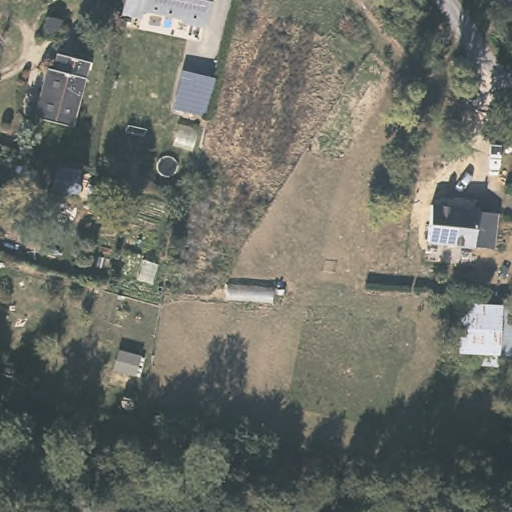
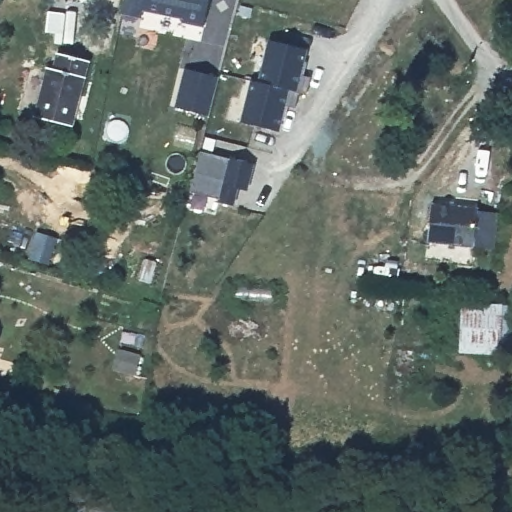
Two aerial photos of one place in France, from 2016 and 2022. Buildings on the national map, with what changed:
unchanged [(47,4),(45,0),(56,0),(47,4)]
unchanged [(213,26),(191,21),(186,15),(152,9),(130,5),(130,0),(217,0),(213,26)]
new [(268,42),(305,51),(298,76),(309,79),(305,96),(297,94),(257,84),(268,42)]
unchanged [(92,57),(75,122),(37,111),(52,61),(59,62),(63,48),(92,57)]
unchanged [(173,107),(180,68),(216,77),(209,116),(173,107)]
new [(250,82),(257,84),(297,94),(293,110),(282,108),(276,133),(240,124),(250,82)]
new [(200,150),(252,164),(247,182),(238,180),(232,205),(217,201),(218,199),(189,191),(200,150)]
unchanged [(86,171),(83,191),(52,186),(57,167),(86,171)]
unchanged [(474,209),(477,211),(497,213),(497,216),(505,217),(502,245),(495,245),(494,250),(426,243),(430,204),(474,209)]
unchanged [(488,301),(507,302),(507,355),(462,353),(464,301),(488,301)]
unchanged [(106,512),(95,512),(93,512),(99,489),(111,493),(106,512)]

